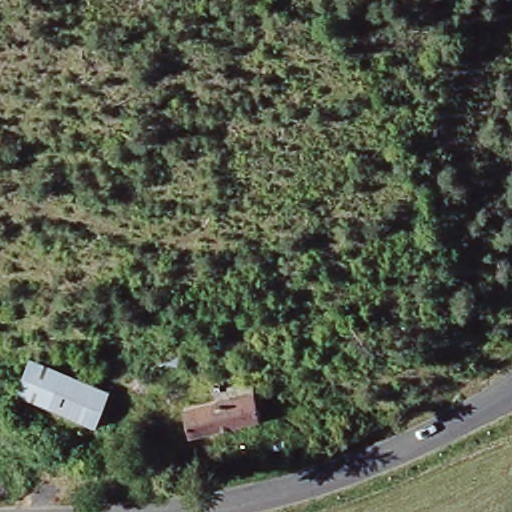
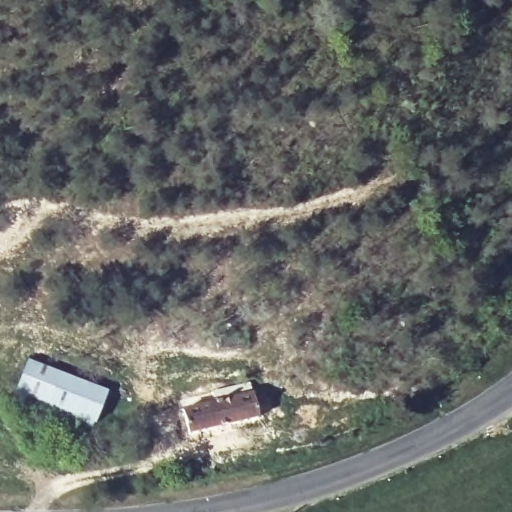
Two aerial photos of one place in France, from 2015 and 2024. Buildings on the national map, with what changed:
unchanged [(18,395),(33,361),(107,392),(98,426),(18,395)]
unchanged [(265,420),(189,439),(184,417),(258,397),(265,420)]

